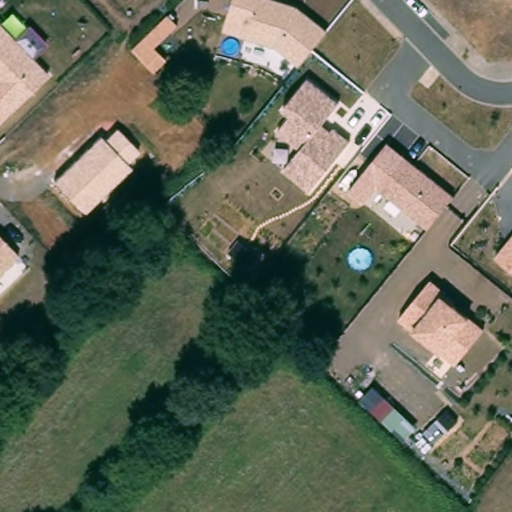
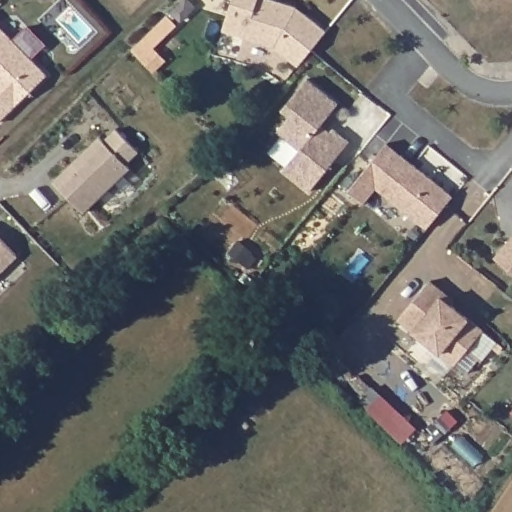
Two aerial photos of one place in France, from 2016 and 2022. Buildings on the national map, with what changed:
unchanged [(276,47),(222,29),(232,0),(275,0),(298,7),(325,30),(297,64),(276,47)]
unchanged [(0,119),(0,24),(47,75),(0,119)]
unchanged [(284,168),(297,151),(278,129),(289,115),(282,107),(296,91),(307,79),(337,102),(321,124),(330,132),(333,127),(348,141),(307,189),(284,168)]
unchanged [(56,181),(101,135),(105,140),(118,127),(140,152),(127,164),(132,170),(84,212),(56,181)]
unchanged [(402,156),(451,195),(427,226),(376,187),(402,156)]
unchanged [(0,273),(0,235),(19,256),(0,273)]
unchanged [(495,261),(512,239),(512,274),(495,261)]
unchanged [(456,364),(400,318),(430,280),(446,293),(456,301),(452,305),(483,330),(456,364)]

